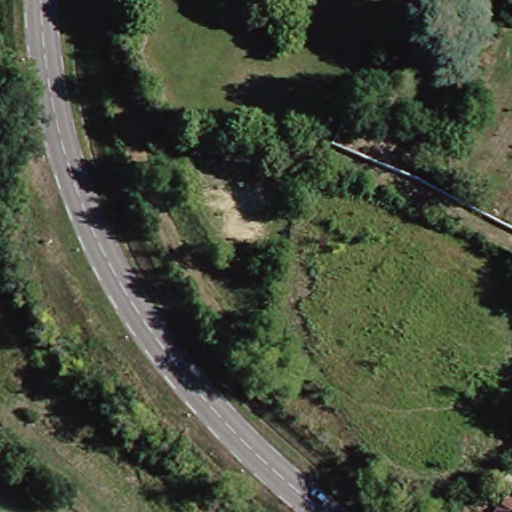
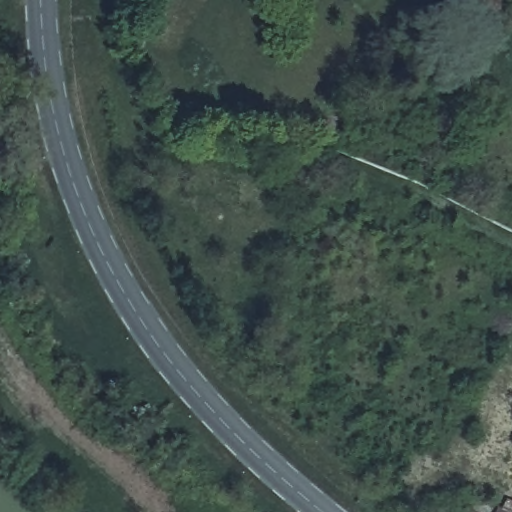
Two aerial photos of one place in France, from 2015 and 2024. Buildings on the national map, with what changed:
unchanged [(472,0),(498,0),(488,20),(468,9),(472,0)]
unchanged [(506,507),(512,510),(512,512),(503,512),(506,507)]
unchanged [(477,510),(480,512),(476,512),(477,510)]

